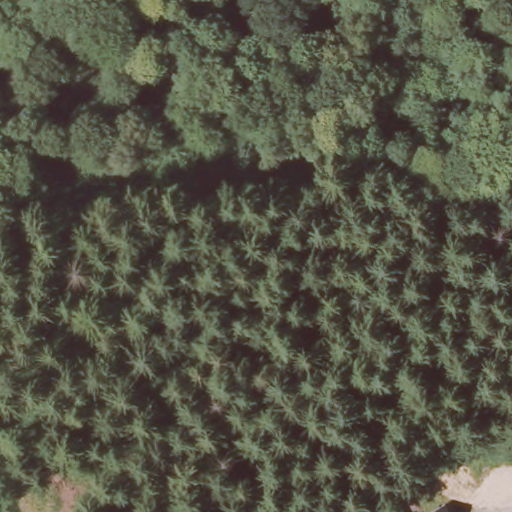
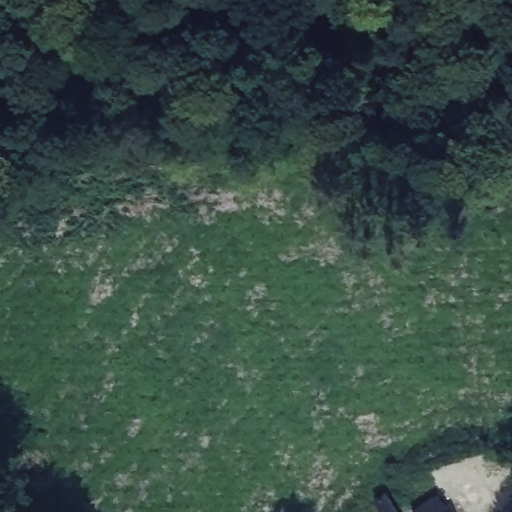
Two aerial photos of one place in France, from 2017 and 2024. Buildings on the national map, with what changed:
unchanged [(388,494),(399,512),(380,512),(374,502),(388,494)]
unchanged [(455,512),(426,512),(448,499),(455,512)]

